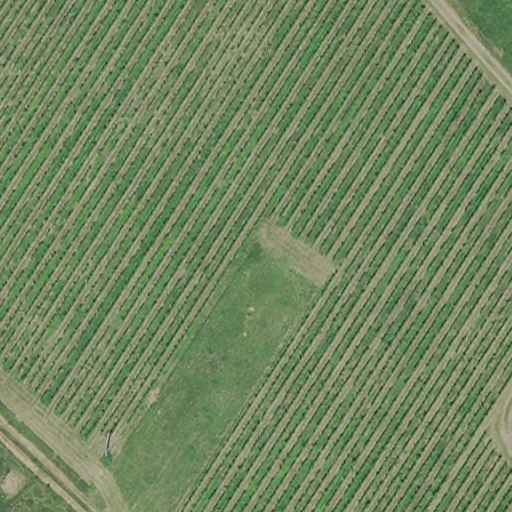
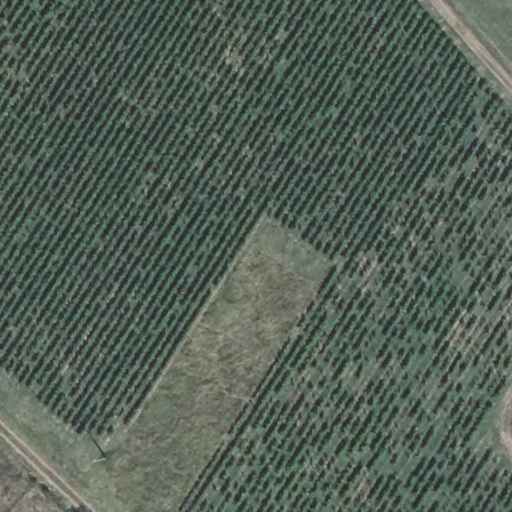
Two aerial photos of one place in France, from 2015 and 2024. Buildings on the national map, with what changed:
[]

